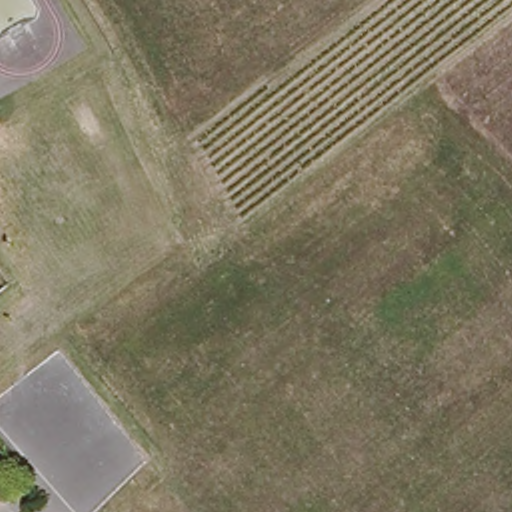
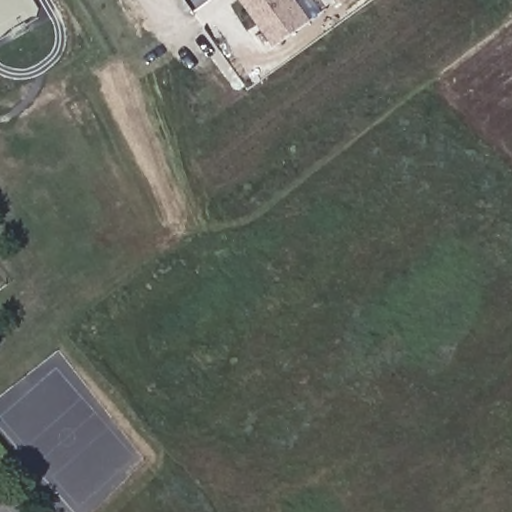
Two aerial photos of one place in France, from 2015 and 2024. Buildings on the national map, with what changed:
new [(308,19),(275,43),(244,0),(295,0),(308,19)]

